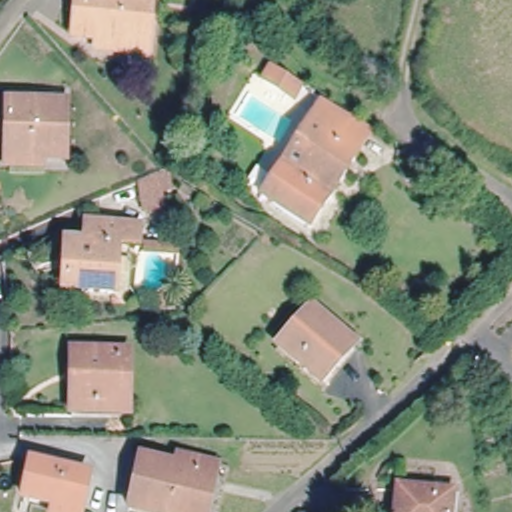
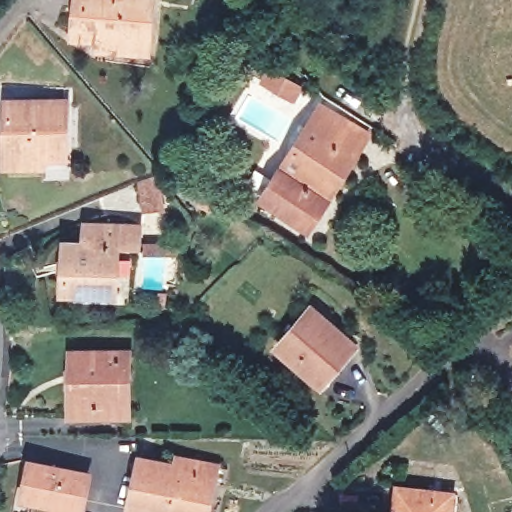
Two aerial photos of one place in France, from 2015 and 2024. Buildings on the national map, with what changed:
unchanged [(93,40),(69,38),(72,0),(147,0),(143,57),(123,55),(91,52),(93,40)]
unchanged [(309,229),(262,196),(280,170),(310,117),(311,116),(319,104),(367,131),(359,145),(327,200),(309,229)]
unchanged [(0,163),(0,105),(60,106),(59,164),(0,163)]
unchanged [(169,192),(160,195),(163,207),(143,211),(138,184),(164,173),(169,192)]
unchanged [(136,246),(116,245),(114,295),(62,291),(65,241),(83,242),(84,222),(136,225),(136,246)]
unchanged [(353,343),(320,382),(279,346),(311,308),(353,343)]
unchanged [(126,419),(68,419),(68,408),(68,355),(123,355),(123,373),(128,373),(126,419)]
unchanged [(140,457),(175,465),(177,457),(214,465),(213,472),(205,512),(129,512),(131,502),(140,457)]
unchanged [(24,499),(30,464),(82,473),(88,475),(81,510),(81,512),(56,512),(57,505),(24,499)]
unchanged [(395,512),(398,488),(450,493),(449,512),(395,512)]

